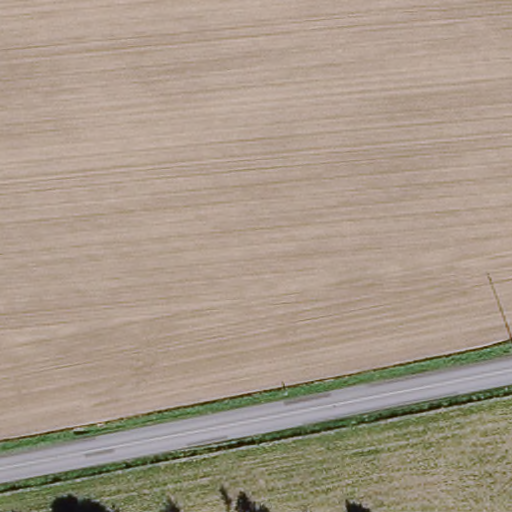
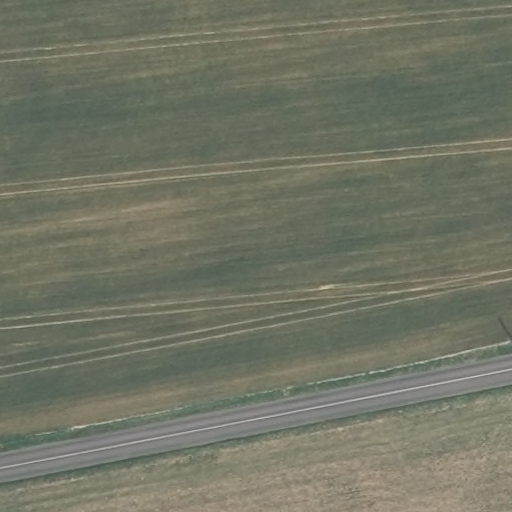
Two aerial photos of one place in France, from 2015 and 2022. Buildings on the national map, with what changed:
[]

